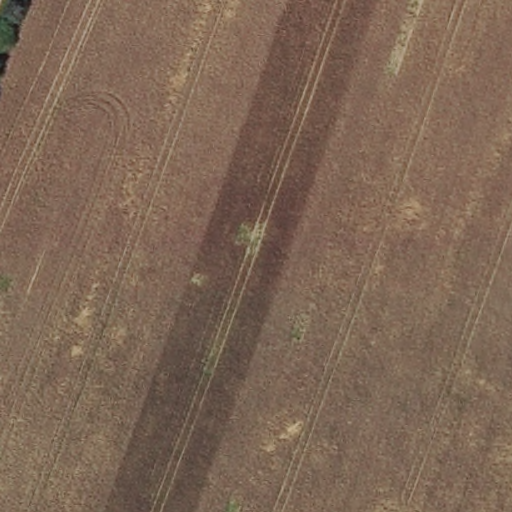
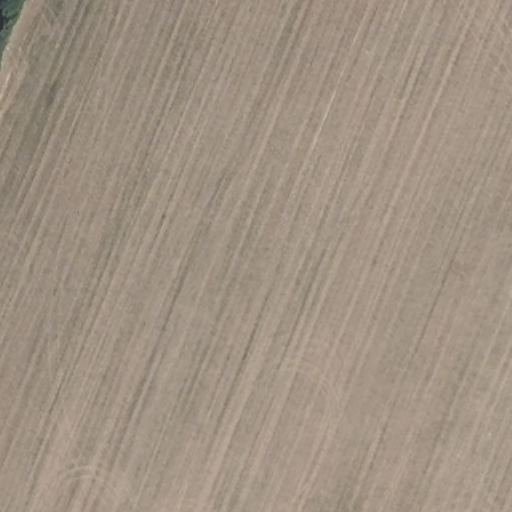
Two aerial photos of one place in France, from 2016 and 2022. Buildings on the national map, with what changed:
[]

